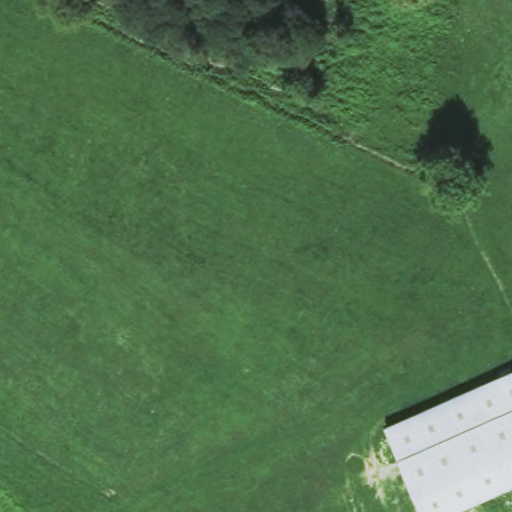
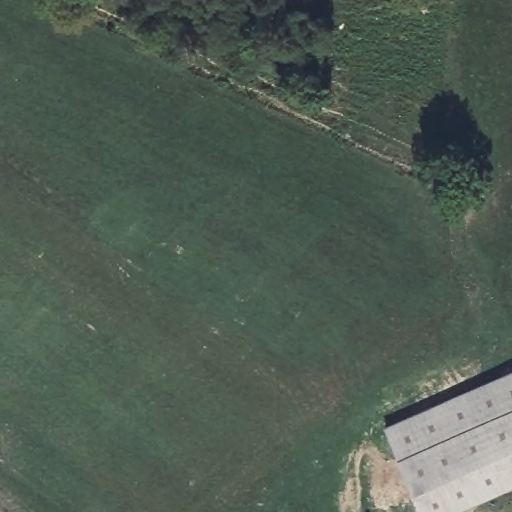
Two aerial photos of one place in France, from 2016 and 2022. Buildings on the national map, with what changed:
unchanged [(512,489),(462,512),(430,512),(390,426),(512,371),(512,489)]

